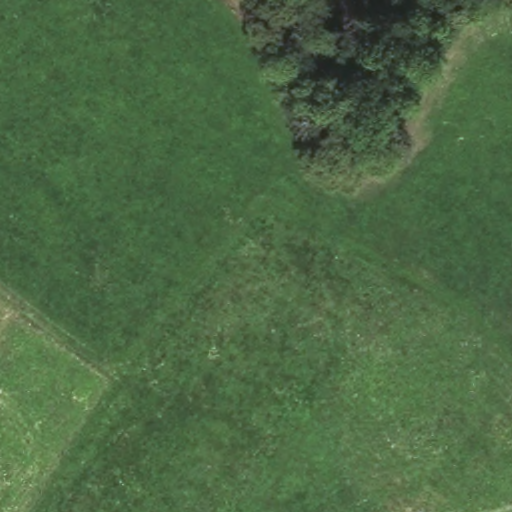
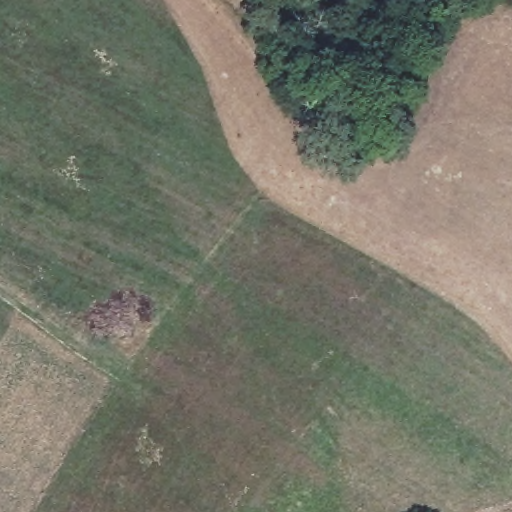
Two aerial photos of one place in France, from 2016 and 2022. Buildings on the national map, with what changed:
[]

